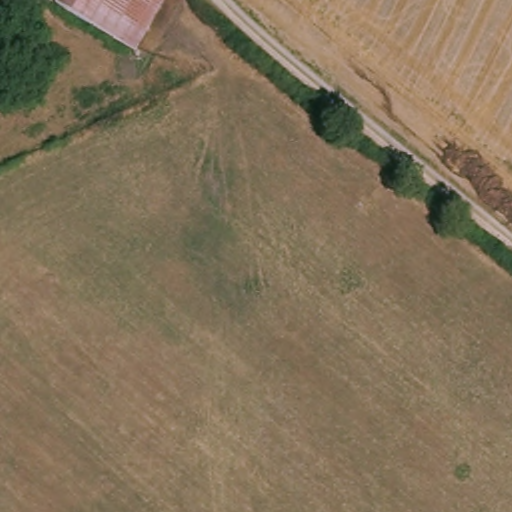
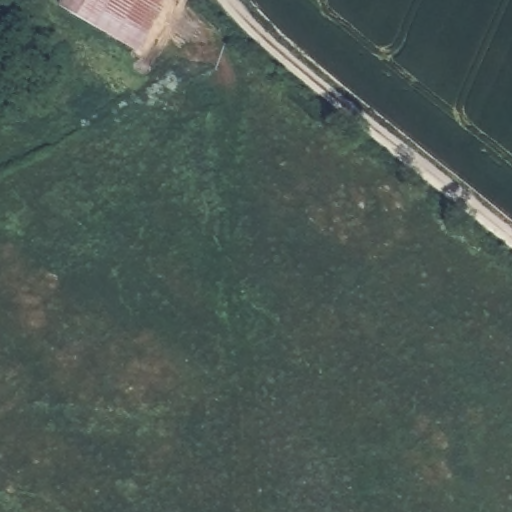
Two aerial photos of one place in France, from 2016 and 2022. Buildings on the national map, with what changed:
unchanged [(55,9),(60,0),(165,0),(136,54),(55,9)]

